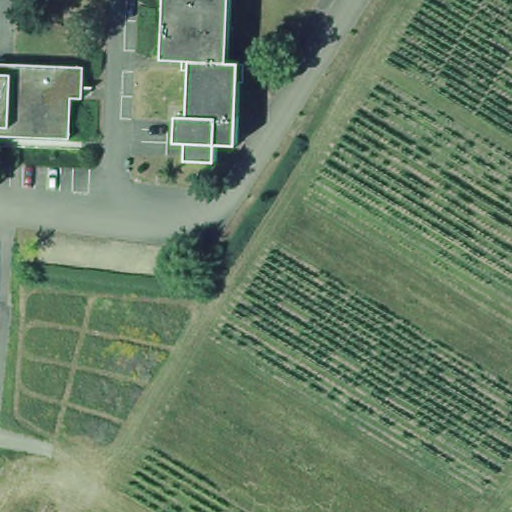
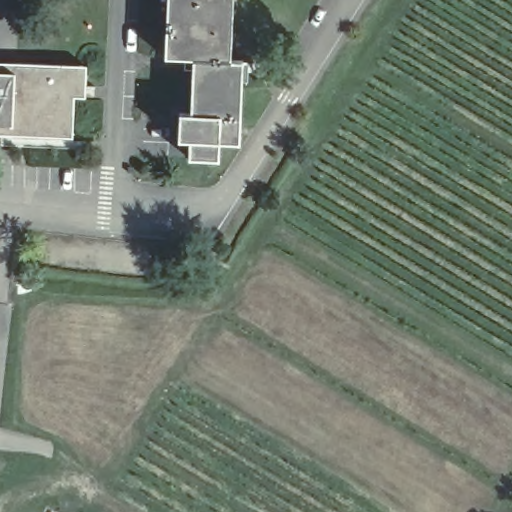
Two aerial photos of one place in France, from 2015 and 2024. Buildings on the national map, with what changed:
unchanged [(222,60),(186,58),(157,57),(161,0),(226,0),(222,60)]
unchanged [(172,114),(183,114),(186,58),(222,60),(235,61),(230,144),(212,143),(210,161),(180,159),(181,141),(170,141),(172,114)]
unchanged [(80,96),(67,96),(65,139),(0,135),(0,59),(10,60),(82,64),(80,96)]

